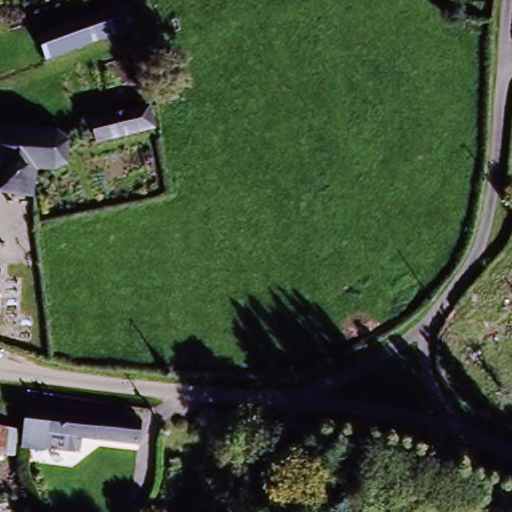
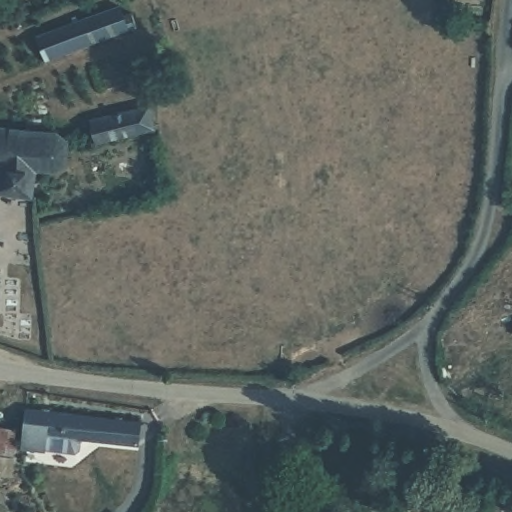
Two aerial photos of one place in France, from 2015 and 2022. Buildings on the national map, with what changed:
unchanged [(7,69),(0,49),(0,38),(109,0),(115,0),(124,27),(7,69)]
unchanged [(95,136),(90,110),(145,99),(149,126),(95,136)]
unchanged [(34,187),(0,183),(0,115),(12,117),(22,119),(25,119),(50,122),(55,126),(64,132),(65,132),(67,141),(67,148),(62,157),(56,162),(55,163),(47,167),(34,166),(34,187)]
unchanged [(22,403),(32,405),(54,407),(102,412),(130,415),(136,416),(135,431),(134,440),(94,436),(44,432),(42,448),(18,447),(20,430),(20,428),(22,412),(22,403)]
unchanged [(17,457),(0,455),(0,426),(20,430),(18,447),(17,457)]

